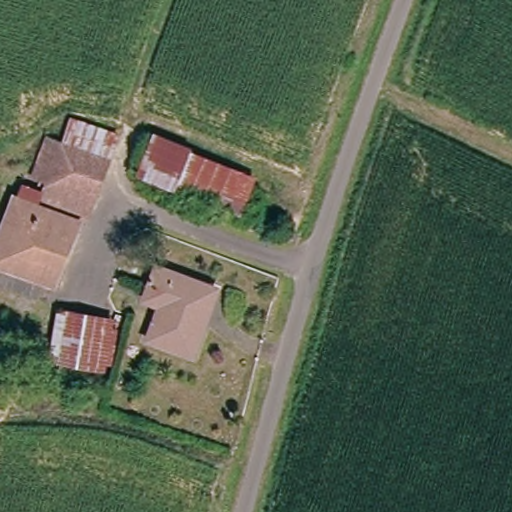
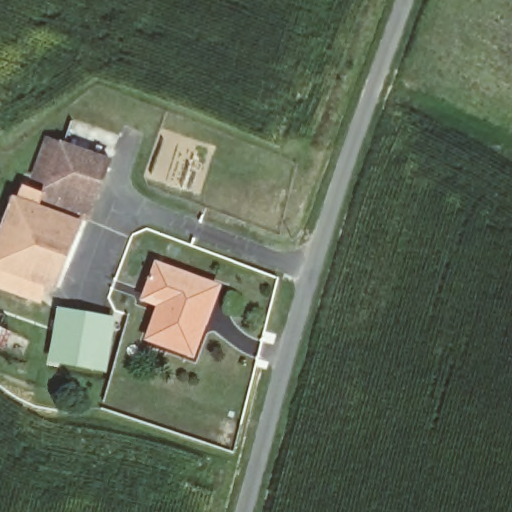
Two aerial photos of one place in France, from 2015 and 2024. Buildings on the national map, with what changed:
unchanged [(56,134),(70,139),(110,156),(104,175),(90,216),(79,211),(55,276),(45,271),(36,295),(0,280),(0,234),(16,194),(42,203),(54,176),(40,171),(56,134)]
unchanged [(203,290),(197,312),(207,317),(195,355),(155,341),(165,310),(144,303),(146,292),(152,273),(203,290)]
unchanged [(61,312),(121,325),(111,358),(109,367),(55,358),(56,350),(61,312)]
unchanged [(0,340),(0,319),(10,323),(2,341),(0,340)]

